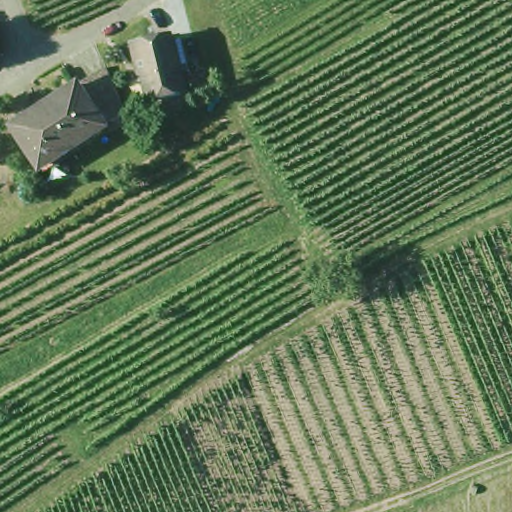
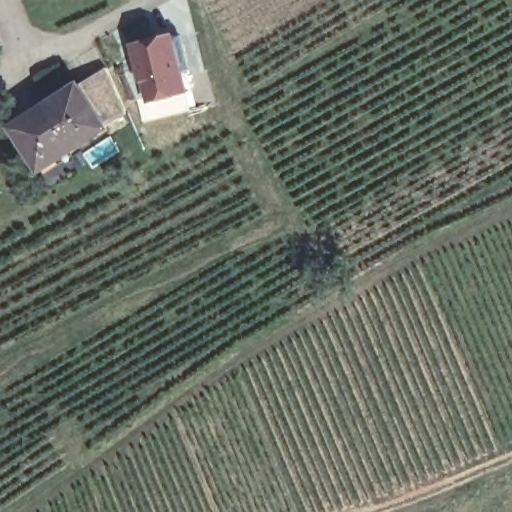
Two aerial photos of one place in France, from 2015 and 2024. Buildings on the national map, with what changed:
unchanged [(150,94),(149,89),(147,89),(140,62),(137,62),(133,42),(172,34),(182,81),(183,87),(150,94)]
unchanged [(23,132),(45,117),(86,91),(94,86),(115,72),(135,117),(120,127),(113,131),(50,171),(27,138),(23,132)]

